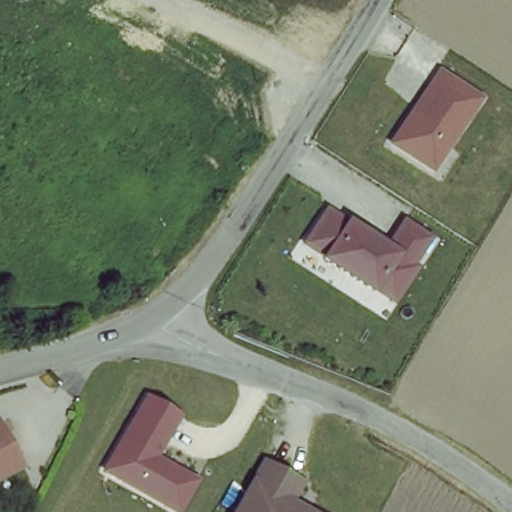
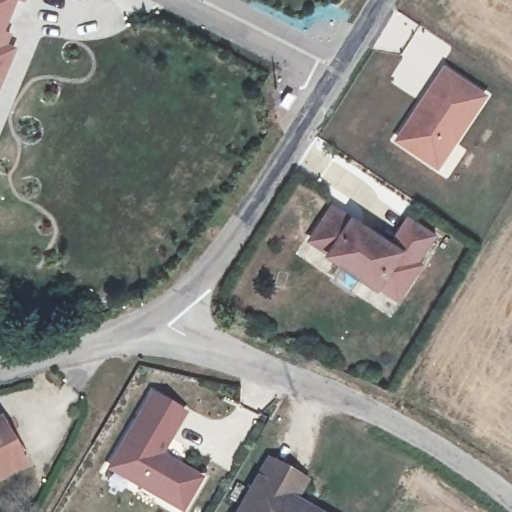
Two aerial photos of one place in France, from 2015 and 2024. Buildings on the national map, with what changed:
new [(17,0),(6,26),(13,29),(8,43),(17,46),(10,64),(1,60),(0,61),(0,0),(17,0)]
new [(1,60),(10,64),(0,86),(0,61),(1,60)]
unchanged [(411,116),(442,69),(483,96),(434,168),(400,143),(395,140),(411,116)]
unchanged [(434,237),(415,262),(420,266),(396,299),(378,284),(375,288),(328,254),(329,251),(310,238),(332,203),(391,244),(409,218),(434,237)]
unchanged [(151,391),(188,413),(164,452),(203,476),(182,512),(179,512),(105,468),(151,391)]
unchanged [(0,472),(0,429),(20,460),(0,472)]
unchanged [(264,466),(303,486),(292,507),(301,512),(239,512),(264,466)]

